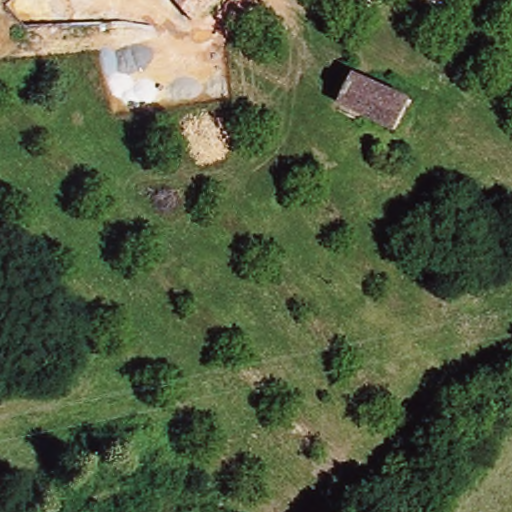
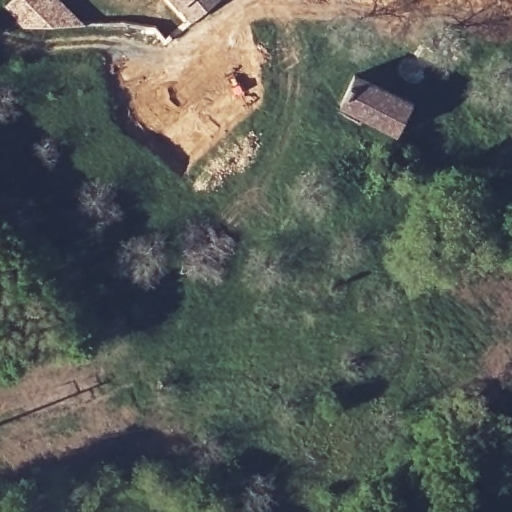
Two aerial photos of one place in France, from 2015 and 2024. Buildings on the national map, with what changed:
new [(12,0),(16,0),(18,1),(15,4),(20,7),(23,3),(21,0),(60,0),(80,20),(78,24),(56,26),(35,26),(22,27),(5,5),(12,0)]
unchanged [(197,14),(186,2),(180,3),(178,0),(216,0),(197,14)]
unchanged [(256,63),(242,55),(248,45),(262,52),(256,63)]
unchanged [(357,73),(414,100),(400,129),(341,102),(357,73)]

